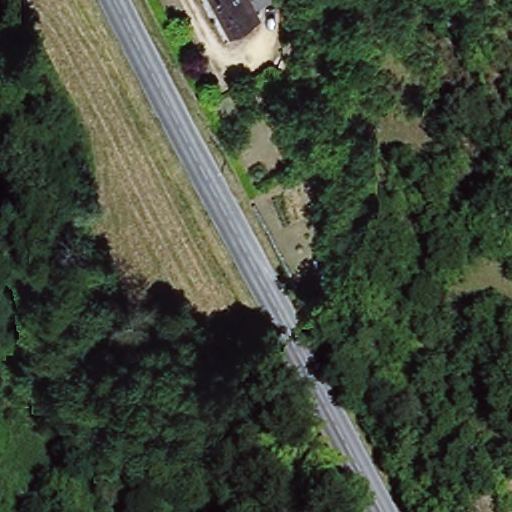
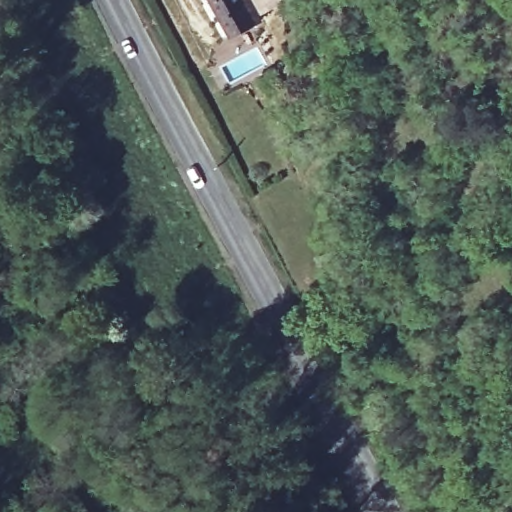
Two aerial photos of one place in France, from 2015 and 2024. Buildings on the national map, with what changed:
unchanged [(236,35),(229,38),(208,0),(242,0),(255,24),(236,35)]
unchanged [(263,105),(245,112),(237,94),(256,86),(263,105)]

